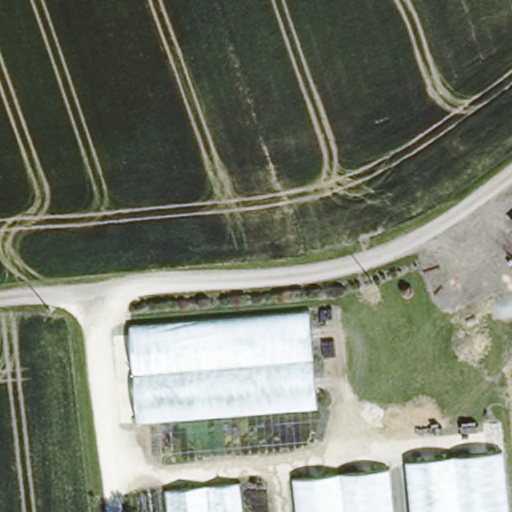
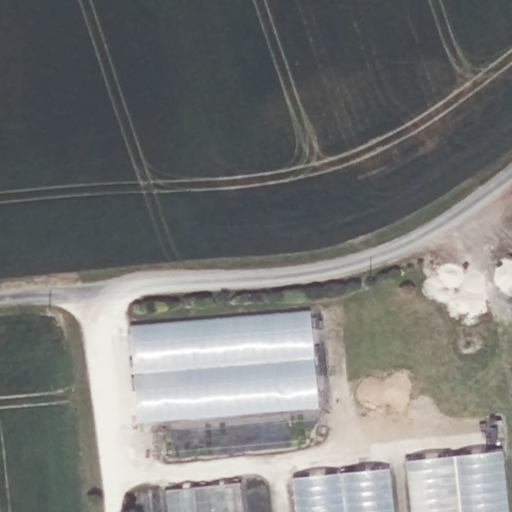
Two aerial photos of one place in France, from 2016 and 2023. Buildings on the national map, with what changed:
unchanged [(306,305),(316,405),(132,418),(124,320),(306,305)]
unchanged [(503,451),(509,512),(410,512),(404,461),(503,451)]
unchanged [(389,512),(291,512),(287,478),(385,470),(389,512)]
unchanged [(236,477),(240,512),(163,512),(160,486),(236,477)]

